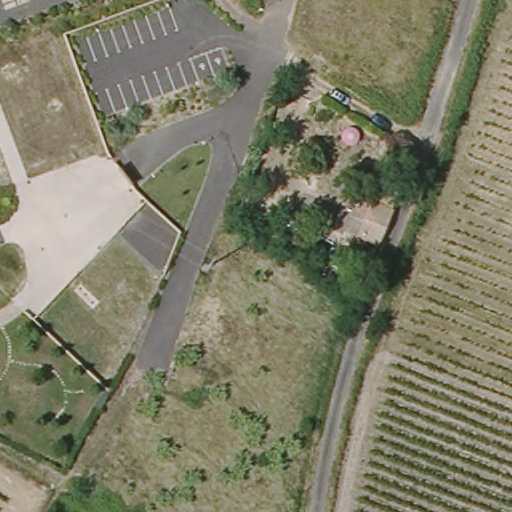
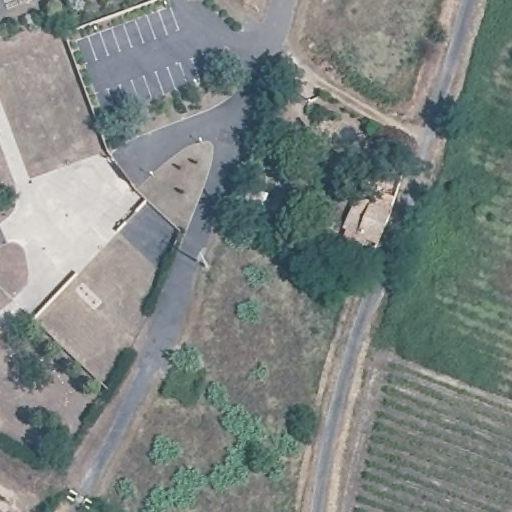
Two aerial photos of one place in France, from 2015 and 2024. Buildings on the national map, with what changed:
unchanged [(383,251),(362,242),(380,191),(400,200),(383,251)]

